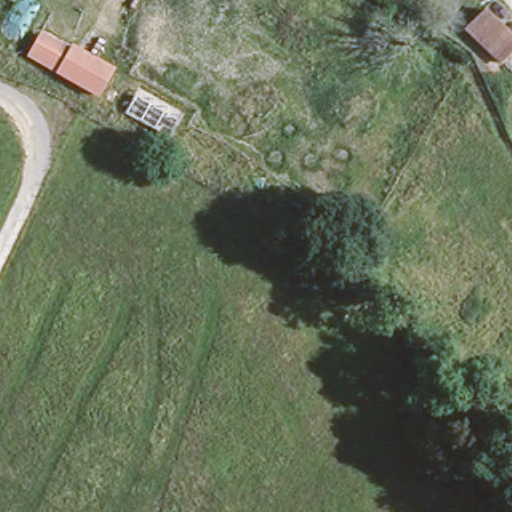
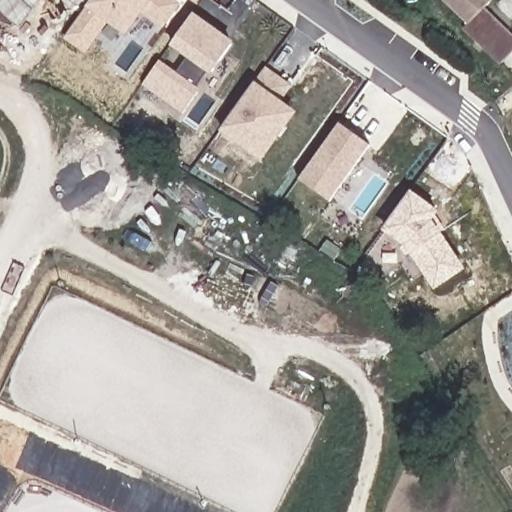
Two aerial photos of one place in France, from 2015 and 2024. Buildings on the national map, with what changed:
new [(0,21),(0,0),(41,0),(20,29),(0,21)]
new [(163,30),(142,15),(126,37),(108,24),(86,54),(63,40),(91,0),(176,0),(181,4),(163,30)]
new [(488,0),(490,2),(483,9),(512,36),(512,55),(503,64),(466,27),(472,20),(451,0),(488,0)]
new [(160,60),(169,46),(192,12),(234,42),(210,76),(207,74),(198,87),(201,89),(183,115),(142,86),(160,60)]
demolished [(54,72),(25,57),(40,30),(70,49),(54,72)]
demolished [(70,49),(73,45),(116,67),(100,97),(54,72),(70,49)]
new [(253,85),(263,70),(288,87),(276,102),(293,113),(261,157),(222,129),(253,85)]
new [(339,123),(370,146),(330,202),(299,180),(339,123)]
new [(411,190),(439,212),(437,215),(446,230),(442,232),(466,269),(434,291),(410,255),(405,247),(382,230),(411,190)]

